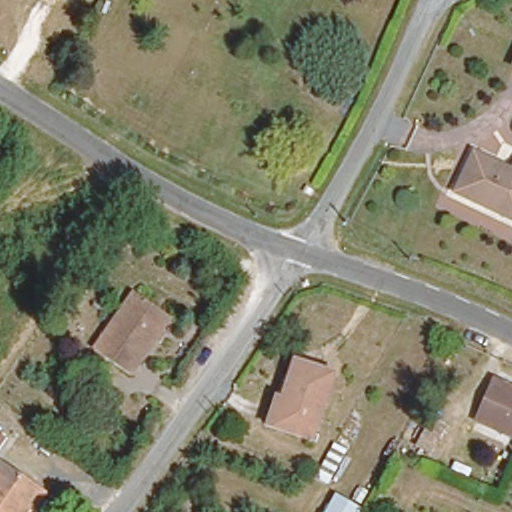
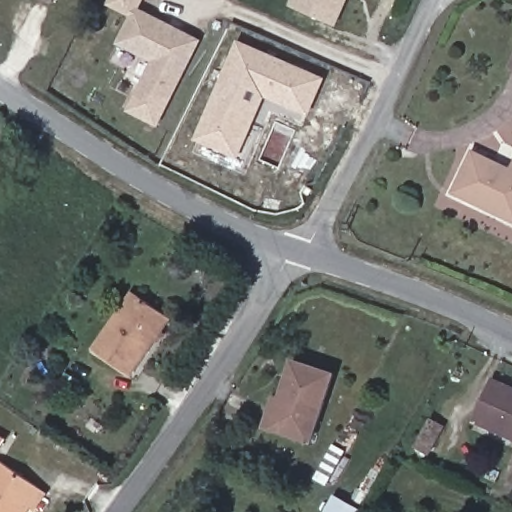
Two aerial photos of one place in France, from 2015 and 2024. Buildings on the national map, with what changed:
new [(136,9),(178,30),(191,37),(198,41),(154,123),(127,110),(153,61),(118,43),(132,16),(109,4),(111,0),(141,0),(136,9)]
new [(293,0),(342,0),(332,23),(290,7),(293,0)]
new [(231,61),(239,44),(319,77),(304,111),(273,98),(263,94),(234,155),(195,138),(216,93),(231,61)]
unchanged [(508,72),(512,61),(512,74),(508,72)]
unchanged [(487,207),(456,194),(472,155),(507,170),(512,158),(512,217),(487,207)]
unchanged [(90,353),(129,294),(169,317),(129,377),(90,353)]
unchanged [(274,392),(279,394),(296,359),(335,377),(304,440),(267,422),(261,420),(274,392)]
unchanged [(475,421),(495,381),(512,389),(512,438),(475,421)]
unchanged [(427,444),(442,415),(456,422),(441,452),(427,444)]
unchanged [(0,464),(0,427),(24,442),(6,468),(0,464)]
unchanged [(326,480),(352,433),(363,438),(337,485),(326,480)]
unchanged [(43,492),(51,497),(41,512),(0,512),(0,489),(11,473),(43,492)]
unchanged [(321,512),(334,493),(361,510),(359,512),(321,512)]

